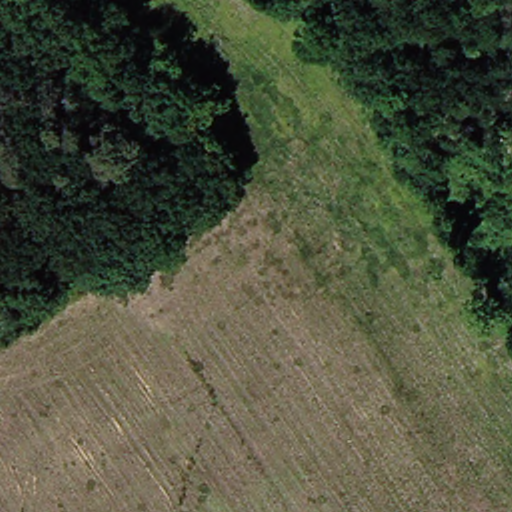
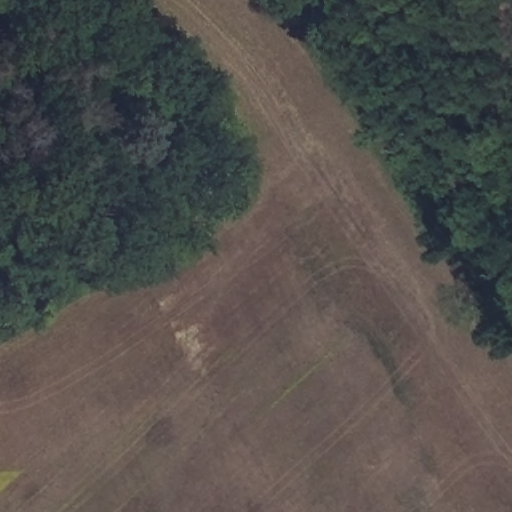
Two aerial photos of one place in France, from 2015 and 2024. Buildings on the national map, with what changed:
[]

